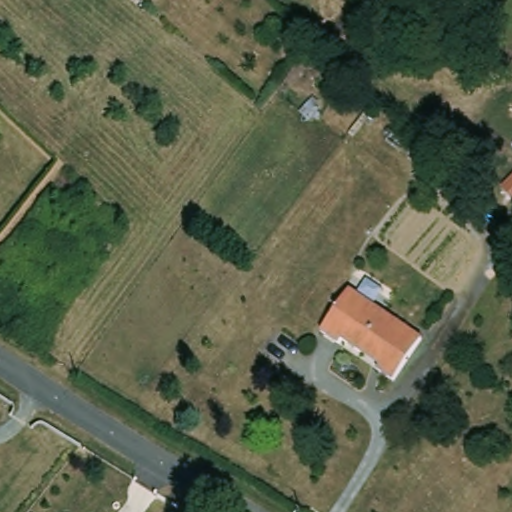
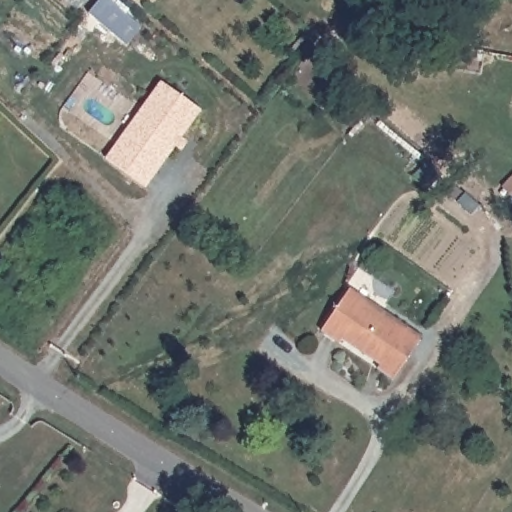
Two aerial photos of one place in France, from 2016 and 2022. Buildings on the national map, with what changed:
new [(201,110),(182,137),(188,142),(182,152),(175,147),(146,189),(105,160),(161,82),(201,110)]
unchanged [(336,343),(320,332),(323,327),(348,290),(419,339),(396,373),(391,380),(374,369),(336,343)]

